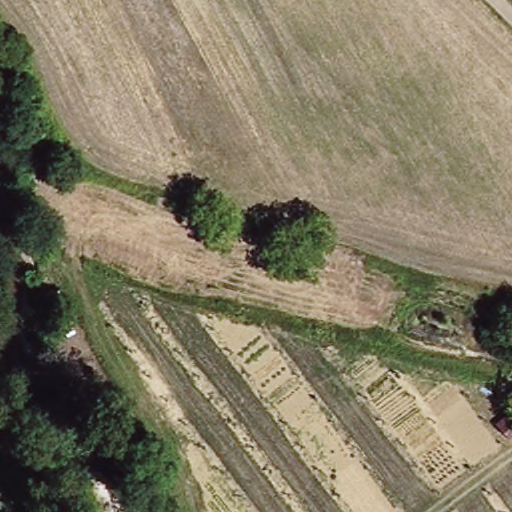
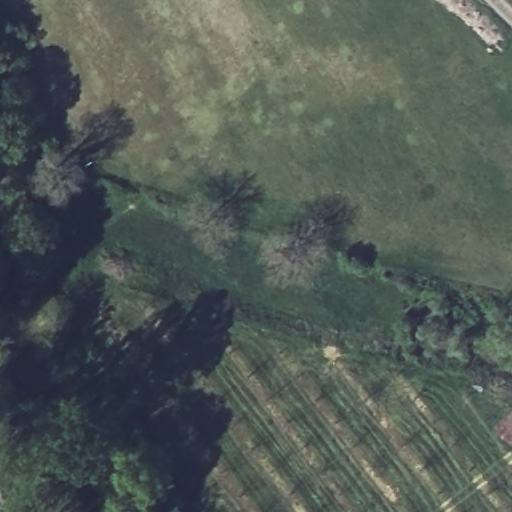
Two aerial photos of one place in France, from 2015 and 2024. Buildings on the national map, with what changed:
unchanged [(505,423),(512,416),(512,431),(505,423)]

